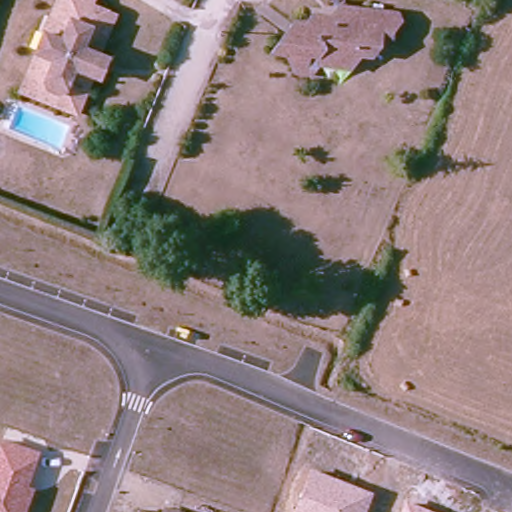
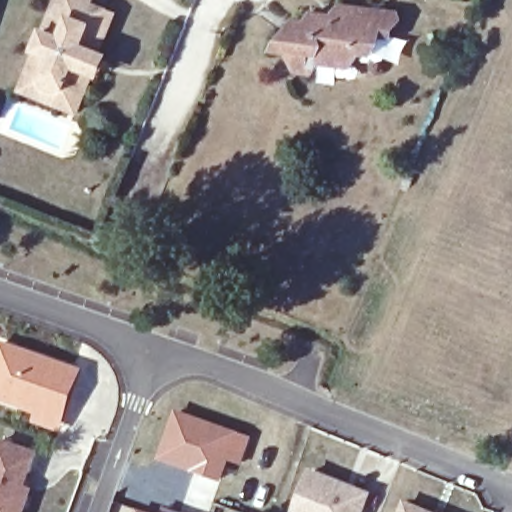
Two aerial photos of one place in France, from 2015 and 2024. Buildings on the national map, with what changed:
unchanged [(34,61),(38,49),(51,14),(56,0),(91,0),(89,4),(110,11),(96,50),(107,54),(99,74),(89,70),(85,81),(81,93),(76,106),(25,88),(29,75),(34,61)]
unchanged [(303,19),(310,9),(332,11),(341,0),(353,0),(359,4),(381,6),(387,14),(363,45),(367,49),(355,64),(344,63),(341,56),(329,55),(321,66),(300,65),(289,50),(273,48),(296,17),(303,19)]
new [(83,371),(61,435),(33,426),(37,415),(0,402),(0,343),(0,342),(83,371)]
new [(177,409),(255,438),(245,465),(232,461),(224,483),(159,459),(177,409)]
unchanged [(39,450),(28,486),(36,488),(27,512),(0,512),(0,438),(39,450)]
unchanged [(373,492),(366,512),(293,512),(309,468),(373,492)]
unchanged [(437,512),(399,512),(404,499),(437,512)]
unchanged [(144,507),(161,512),(143,512),(144,507)]

